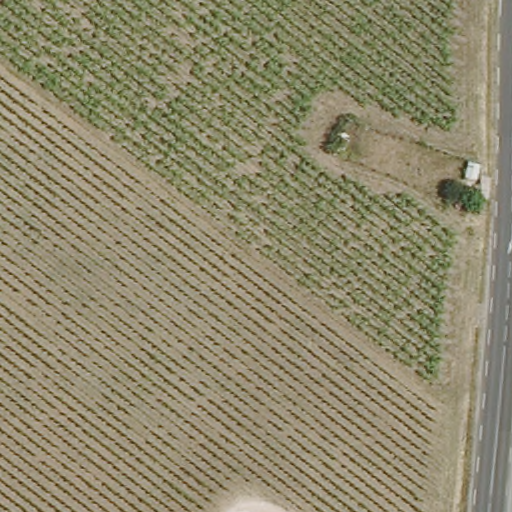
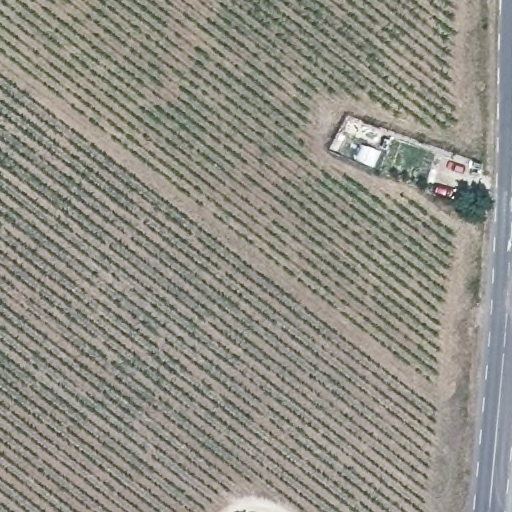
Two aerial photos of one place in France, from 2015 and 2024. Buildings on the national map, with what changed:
unchanged [(469,161),(484,164),(481,180),(467,176),(469,161)]

